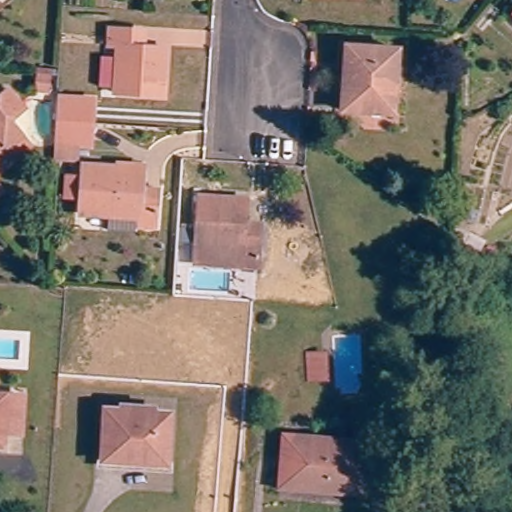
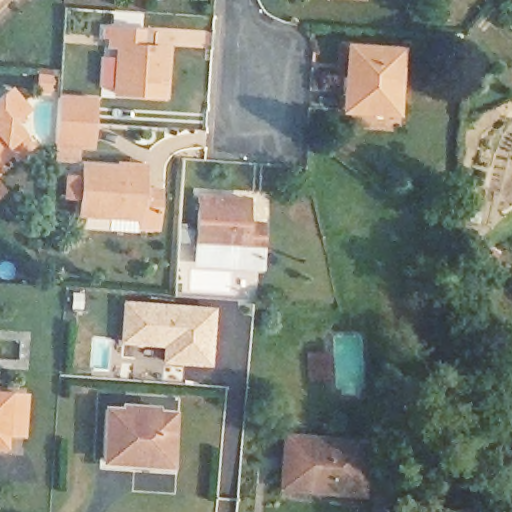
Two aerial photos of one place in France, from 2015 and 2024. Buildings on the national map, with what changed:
unchanged [(108,92),(112,39),(102,38),(103,25),(152,28),(150,44),(156,44),(152,94),(108,92)]
unchanged [(341,114),(345,55),(396,58),(393,117),(341,114)]
unchanged [(15,109),(0,122),(0,93),(15,109)]
unchanged [(51,160),(53,145),(55,121),(56,98),(91,100),(90,123),(87,147),(68,146),(67,161),(51,160)]
unchanged [(8,159),(2,152),(0,154),(0,122),(22,147),(8,159)]
unchanged [(158,193),(155,228),(136,227),(135,233),(107,231),(108,216),(79,214),(80,198),(65,197),(67,177),(82,178),(83,162),(115,165),(115,171),(145,173),(144,192),(158,193)]
unchanged [(260,223),(258,267),(196,264),(200,194),(245,197),(244,222),(260,223)]
new [(214,307),(210,367),(161,363),(162,346),(120,344),(122,301),(214,307)]
unchanged [(311,378),(310,353),(325,352),(326,377),(311,378)]
unchanged [(9,390),(24,390),(20,440),(3,438),(2,451),(0,451),(0,390),(9,390)]
unchanged [(100,459),(105,409),(170,412),(167,464),(100,459)]
unchanged [(284,455),(285,436),(362,440),(360,491),(292,487),(282,487),(284,455)]

